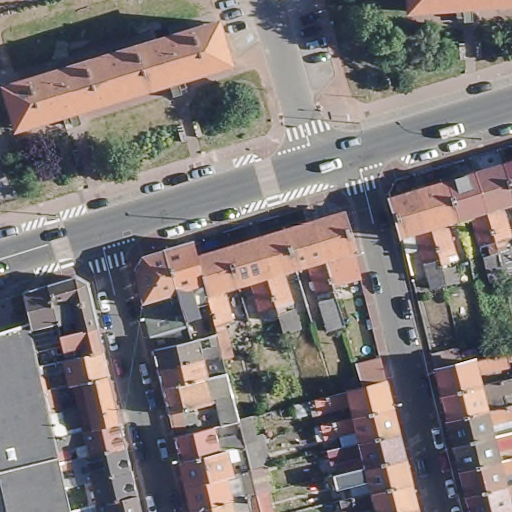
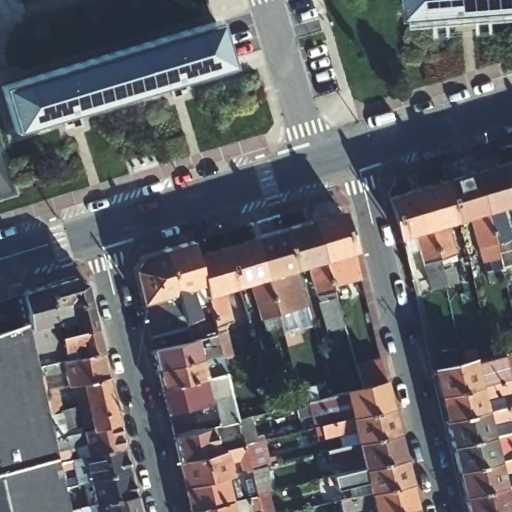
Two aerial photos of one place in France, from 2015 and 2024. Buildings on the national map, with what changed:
unchanged [(469,7),(469,12),(454,13),(454,8),(407,12),(406,0),(512,0),(512,3),(469,7)]
unchanged [(216,23),(228,65),(182,79),(184,84),(169,89),(167,83),(74,113),(75,117),(59,122),(58,117),(13,130),(1,88),(216,23)]
unchanged [(510,208),(507,197),(497,167),(512,163),(512,208),(510,208)]
unchanged [(507,197),(510,208),(498,211),(507,242),(498,245),(499,250),(507,248),(511,260),(494,265),(493,258),(488,236),(469,176),(497,167),(507,197)]
unchanged [(488,236),(493,258),(494,265),(497,277),(481,280),(465,222),(453,225),(441,184),(469,176),(488,236)]
unchanged [(423,227),(413,193),(441,184),(453,225),(442,229),(449,251),(444,252),(447,264),(434,268),(423,227)]
unchanged [(447,286),(439,288),(429,291),(424,272),(421,273),(416,254),(401,257),(384,201),(413,193),(423,227),(434,268),(436,274),(444,272),(447,286)]
unchanged [(331,280),(313,216),(341,207),(353,248),(359,271),(331,280)]
unchanged [(313,216),(331,280),(344,327),(329,332),(321,302),(331,300),(329,293),(319,296),(309,263),(296,267),(284,224),(313,216)]
unchanged [(284,224),(296,267),(284,270),(293,299),(285,302),(288,312),(279,314),(274,298),(255,233),(284,224)]
unchanged [(274,298),(279,314),(271,317),(269,308),(261,310),(252,282),(239,285),(238,280),(226,242),(255,233),(274,298)]
unchanged [(226,329),(232,356),(224,358),(221,349),(201,355),(158,367),(153,345),(149,331),(133,266),(141,253),(164,246),(191,237),(196,251),(211,309),(216,328),(218,331),(226,329)]
unchanged [(211,309),(196,251),(226,242),(238,280),(239,285),(226,289),(233,318),(226,320),(227,325),(216,328),(211,309)]
unchanged [(20,297),(46,289),(73,280),(86,287),(96,332),(102,355),(108,379),(113,399),(118,420),(119,427),(125,452),(86,461),(83,448),(64,452),(68,465),(58,467),(56,454),(0,465),(0,335),(28,328),(20,297)]
unchanged [(507,350),(509,359),(503,361),(504,366),(472,375),(474,385),(435,394),(429,370),(426,356),(454,350),(457,363),(483,356),(507,350)]
unchanged [(158,367),(201,355),(205,368),(225,363),(227,371),(163,387),(158,367)]
unchanged [(352,423),(349,411),(318,419),(316,414),(311,415),(309,407),(331,401),(361,394),(354,371),(379,365),(385,387),(392,413),(352,423)]
unchanged [(191,506),(186,482),(179,457),(219,447),(238,442),(237,437),(233,438),(228,419),(223,420),(216,398),(168,409),(166,399),(163,387),(227,371),(238,416),(244,440),(264,436),(269,461),(268,461),(274,486),(269,488),(275,511),(271,512),(249,512),(248,503),(233,507),(235,512),(193,512),(193,511),(191,506)]
unchanged [(435,394),(474,385),(512,375),(512,403),(442,421),(435,394)]
unchanged [(512,403),(512,419),(485,425),(487,435),(448,445),(442,421),(512,403)]
unchanged [(341,440),(324,443),(323,438),(318,439),(316,432),(352,423),(392,413),(398,438),(344,452),(341,440)]
unchanged [(171,423),(179,421),(182,431),(213,423),(219,447),(179,457),(174,433),(171,423)]
unchanged [(448,445),(487,435),(512,429),(512,443),(490,448),(492,460),(454,470),(448,445)]
unchanged [(342,467),(331,469),(330,463),(324,464),(323,457),(344,452),(398,438),(404,465),(345,479),(342,467)]
unchanged [(95,506),(90,484),(81,486),(77,463),(86,461),(125,452),(131,475),(136,497),(139,512),(94,512),(93,507),(95,506)]
unchanged [(58,467),(64,490),(69,489),(71,493),(73,493),(78,510),(79,512),(0,512),(0,465),(56,454),(58,467)]
unchanged [(454,470),(492,460),(512,455),(512,472),(496,476),(498,485),(459,496),(454,470)]
unchanged [(350,502),(348,491),(337,493),(336,488),(330,489),(329,483),(345,479),(404,465),(410,488),(369,498),(350,502)]
unchanged [(498,485),(512,482),(512,508),(497,512),(464,512),(459,496),(498,485)]
unchanged [(416,512),(374,512),(374,511),(369,512),(336,512),(334,506),(350,502),(369,498),(410,488),(416,512)]
unchanged [(497,512),(512,508),(512,512),(497,512)]

